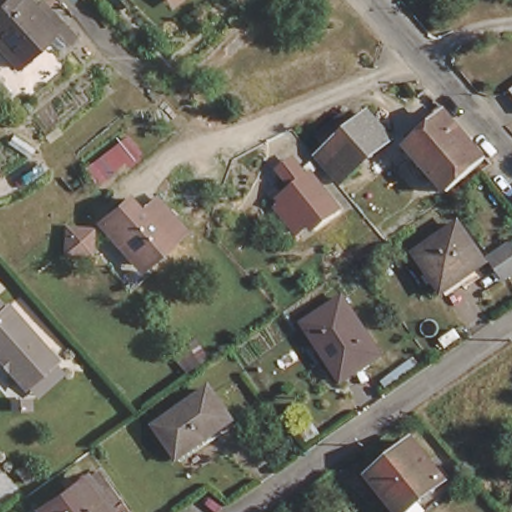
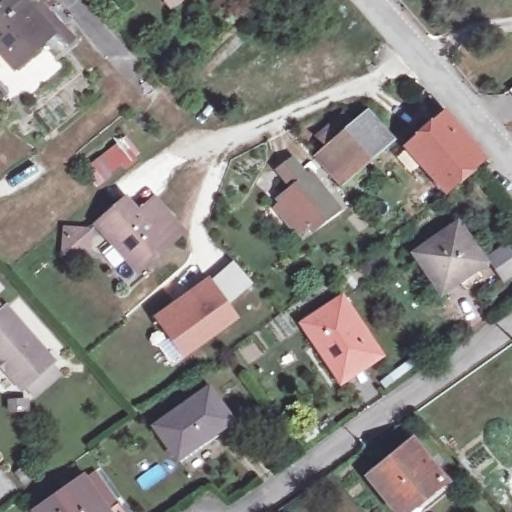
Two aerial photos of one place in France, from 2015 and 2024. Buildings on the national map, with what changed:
unchanged [(0,2),(0,0),(2,0),(0,2)]
unchanged [(0,50),(0,2),(2,0),(25,0),(41,19),(49,12),(58,22),(50,28),(11,63),(0,50)]
unchanged [(178,7),(172,0),(187,0),(178,7)]
unchanged [(444,117),(487,166),(444,196),(405,150),(444,117)]
unchanged [(343,119),(352,130),(366,119),(389,145),(340,187),(317,160),(326,153),(316,142),(343,119)]
unchanged [(101,191),(82,169),(125,139),(139,158),(101,191)]
unchanged [(329,206),(306,223),(302,217),(290,226),(272,203),(277,198),(274,193),(279,189),(288,183),(274,164),(287,154),(301,172),(304,170),(312,179),(321,189),(319,191),(329,206)]
unchanged [(129,200),(141,212),(158,199),(186,231),(146,265),(120,235),(110,233),(103,223),(129,200)]
unchanged [(451,227),(478,265),(453,282),(449,277),(433,289),(410,255),(451,227)]
unchanged [(93,231),(90,253),(85,252),(68,250),(70,234),(71,228),(93,231)]
unchanged [(503,246),(512,260),(512,272),(496,283),(481,261),(503,246)]
new [(208,275),(211,277),(233,259),(253,283),(231,303),(241,317),(201,347),(173,364),(149,340),(161,327),(153,314),(208,275)]
unchanged [(38,391),(28,379),(24,383),(0,355),(0,301),(4,306),(8,303),(55,356),(52,359),(61,371),(38,391)]
unchanged [(304,327),(342,301),(380,357),(364,369),(359,363),(345,373),(321,339),(315,344),(304,327)]
unchanged [(159,432),(211,394),(233,423),(181,461),(159,432)]
unchanged [(421,446),(449,488),(414,512),(398,512),(374,476),(421,446)]
unchanged [(91,472),(114,507),(108,512),(50,512),(46,506),(91,472)]

